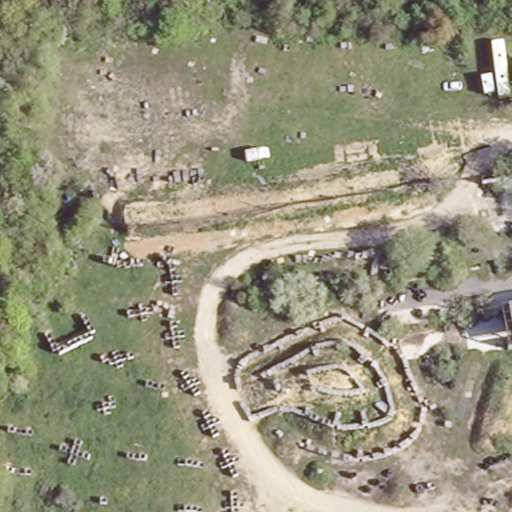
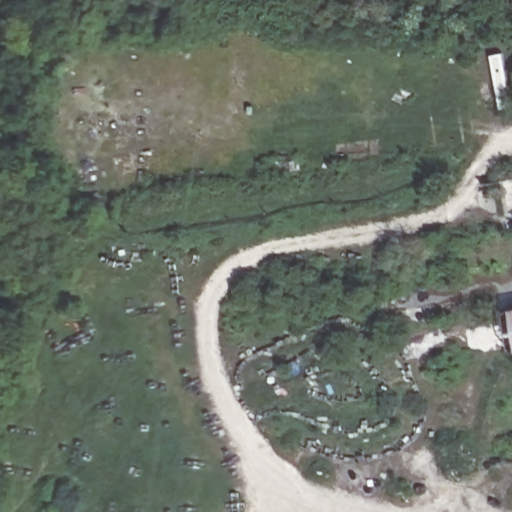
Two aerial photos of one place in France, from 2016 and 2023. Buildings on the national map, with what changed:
unchanged [(504,308),(512,307),(512,352),(504,308)]

